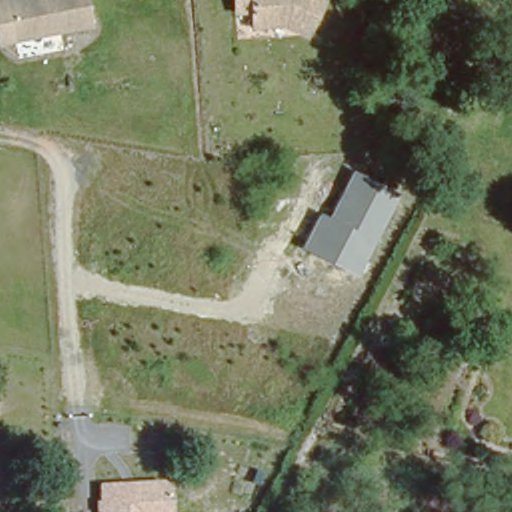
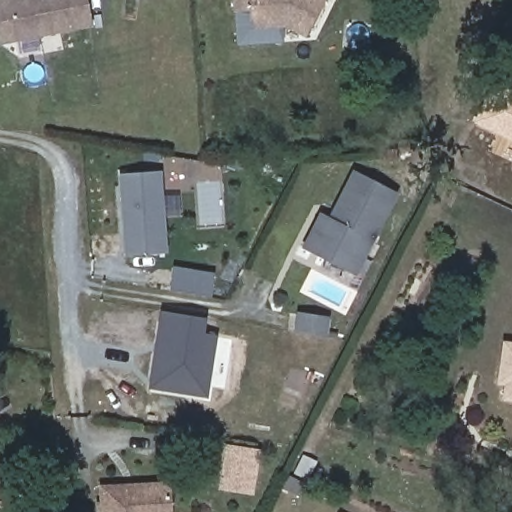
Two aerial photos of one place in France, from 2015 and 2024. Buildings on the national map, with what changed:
unchanged [(16,45),(11,25),(0,28),(0,0),(6,0),(7,6),(29,0),(83,0),(89,27),(16,45)]
unchanged [(305,36),(276,22),(254,22),(254,7),(235,7),(235,0),(322,0),(305,36)]
new [(482,122),(478,115),(495,87),(500,85),(512,91),(512,136),(482,122)]
unchanged [(300,250),(319,214),(330,218),(352,170),(398,192),(355,275),(300,250)]
new [(119,175),(163,172),(168,252),(124,256),(119,175)]
new [(172,290),(175,267),(214,273),(210,296),(172,290)]
new [(163,312),(205,318),(203,334),(216,337),(211,371),(207,371),(206,377),(210,377),(207,397),(151,388),(163,312)]
new [(327,337),(294,332),(298,312),(330,317),(327,337)]
new [(502,401),(502,383),(497,382),(503,341),(512,342),(512,402),(502,401)]
new [(253,496),(219,490),(226,443),(261,450),(253,496)]
unchanged [(99,512),(98,486),(170,482),(171,512),(99,512)]

